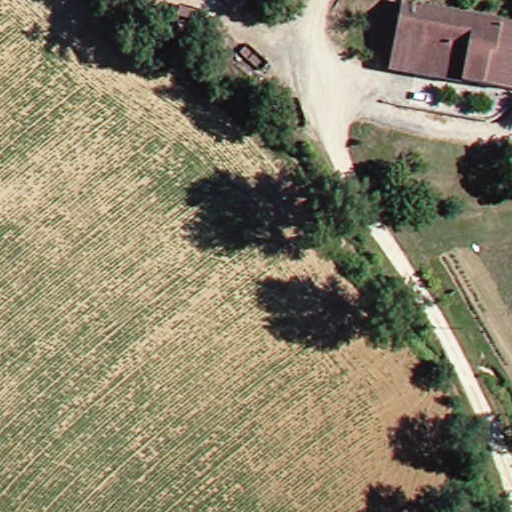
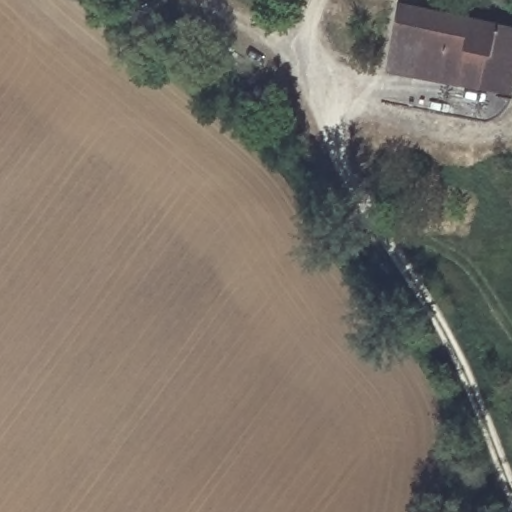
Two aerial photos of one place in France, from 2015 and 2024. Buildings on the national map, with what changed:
unchanged [(388,72),(401,7),(425,11),(416,70),(460,79),(458,88),(388,72)]
unchanged [(416,70),(425,11),(512,25),(512,31),(501,94),(458,88),(460,79),(416,70)]

